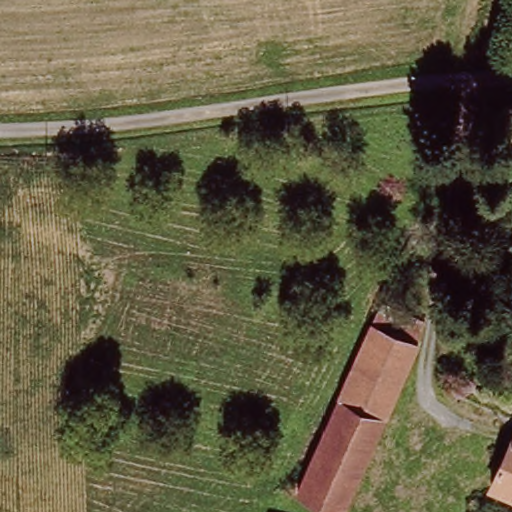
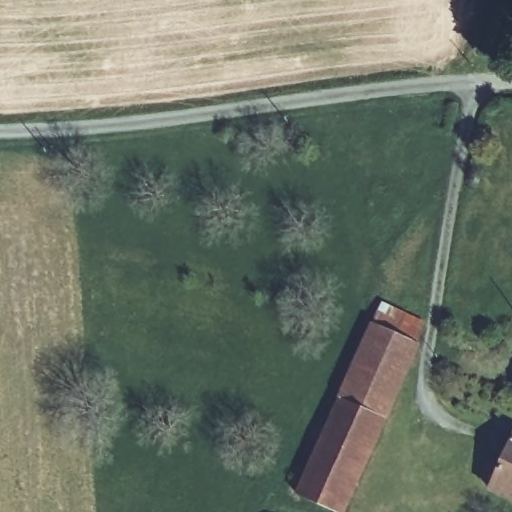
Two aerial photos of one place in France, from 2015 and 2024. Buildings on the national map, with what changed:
unchanged [(415,342),(385,416),(341,395),(381,303),(420,320),(412,340),(415,342)]
unchanged [(298,491),(341,395),(385,416),(343,512),(298,491)]
unchanged [(512,447),(512,499),(495,492),(512,447)]

